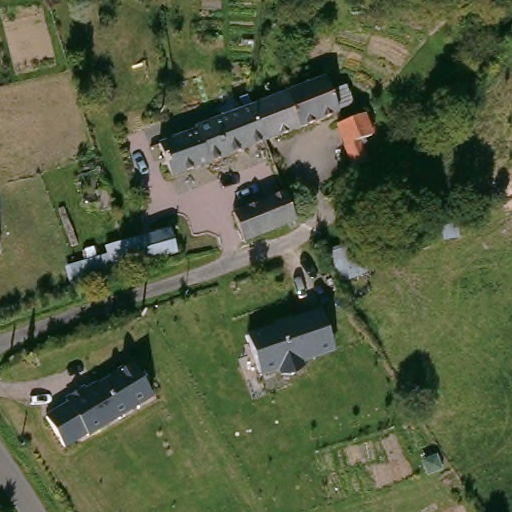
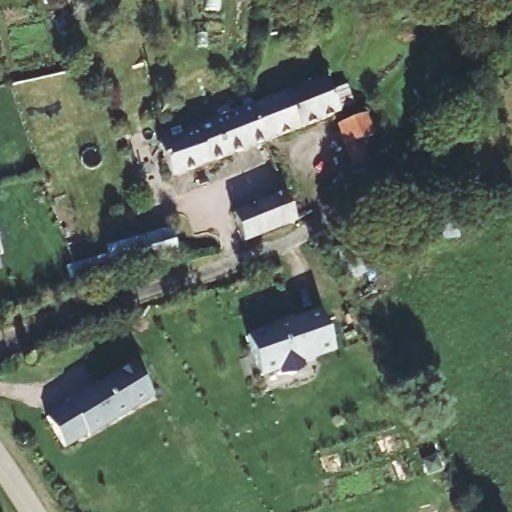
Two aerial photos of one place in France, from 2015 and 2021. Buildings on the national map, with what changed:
unchanged [(323,87),(336,123),(263,150),(251,114),(323,87)]
unchanged [(170,184),(159,153),(196,139),(196,135),(251,114),(263,150),(170,184)]
unchanged [(353,172),(338,131),(360,123),(367,143),(358,147),(365,167),(353,172)]
unchanged [(295,224),(241,241),(232,217),(284,196),(295,224)]
unchanged [(70,287),(65,267),(107,256),(105,247),(170,229),(176,257),(70,287)]
unchanged [(355,252),(363,272),(342,282),(333,262),(355,252)]
unchanged [(244,336),(320,311),(335,353),(303,365),(303,368),(293,377),(280,377),(278,372),(258,380),(244,336)]
unchanged [(152,400),(87,438),(86,437),(63,450),(46,420),(68,407),(66,402),(86,390),(88,395),(114,378),(114,377),(132,366),(152,400)]

